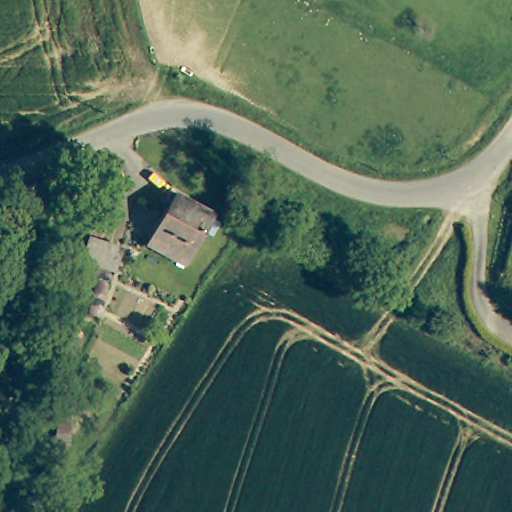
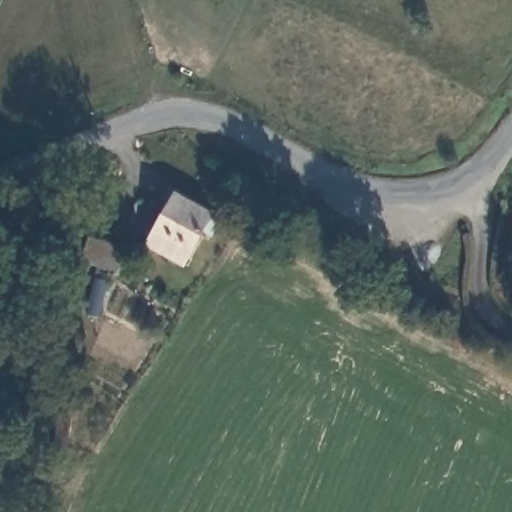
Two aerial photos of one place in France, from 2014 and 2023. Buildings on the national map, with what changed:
unchanged [(148,247),(176,195),(212,214),(184,266),(148,247)]
unchanged [(122,250),(115,274),(80,264),(88,239),(122,250)]
unchanged [(74,396),(69,461),(53,459),(61,394),(74,396)]

